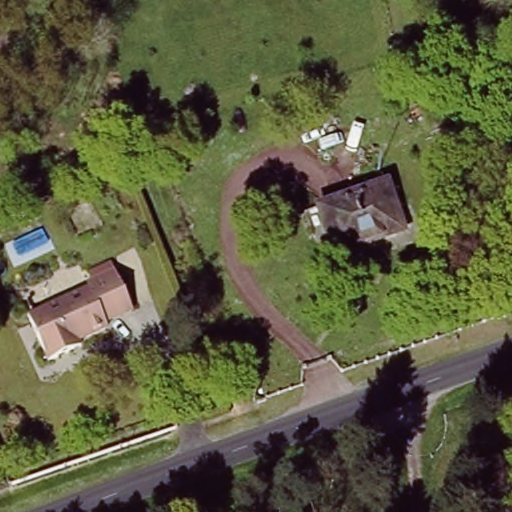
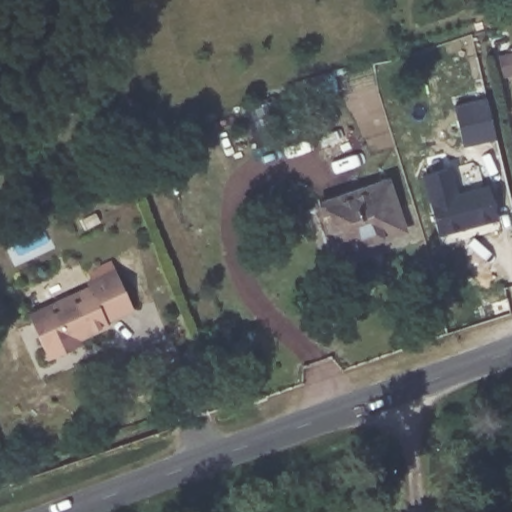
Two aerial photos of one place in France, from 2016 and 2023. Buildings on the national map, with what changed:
new [(454,104),(489,96),(497,140),(464,147),(454,104)]
new [(450,167),(458,194),(490,184),(497,220),(438,236),(421,175),(450,167)]
unchanged [(402,236),(337,250),(326,200),(391,187),(402,236)]
unchanged [(75,348),(49,362),(26,318),(86,287),(84,282),(113,268),(130,306),(77,337),(82,344),(75,348)]

